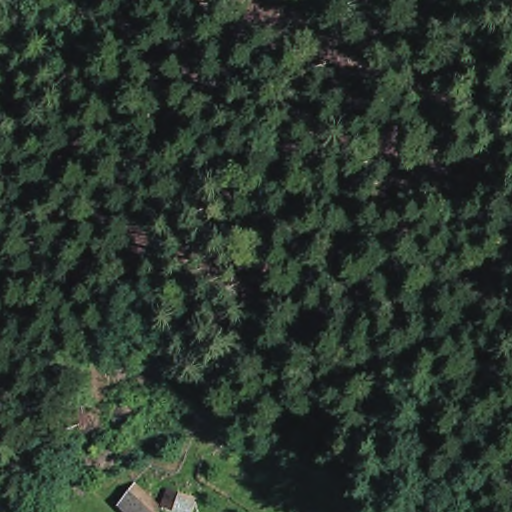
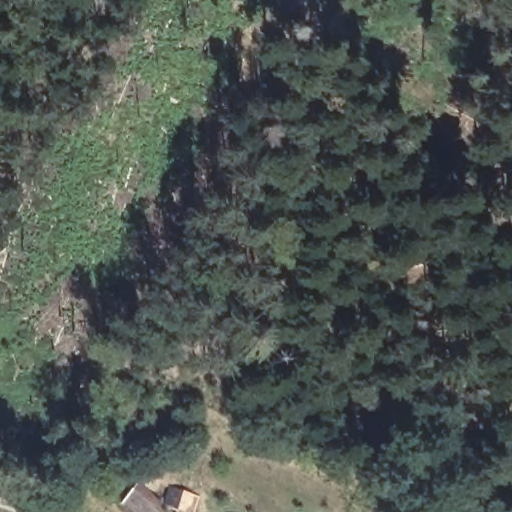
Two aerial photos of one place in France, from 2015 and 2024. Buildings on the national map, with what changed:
unchanged [(126,507),(142,484),(163,508),(161,512),(131,512),(126,507)]
unchanged [(169,507),(173,491),(201,497),(198,512),(194,512),(169,507)]

